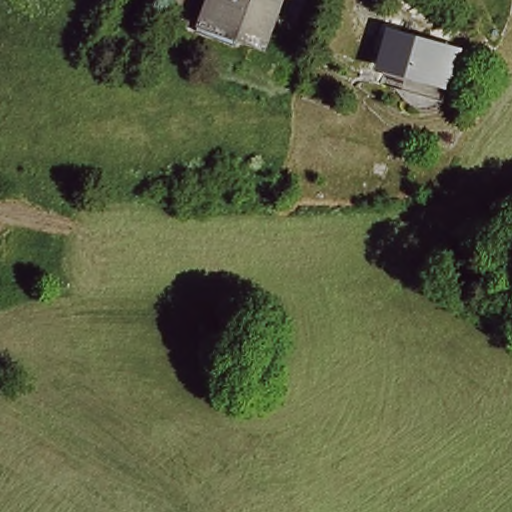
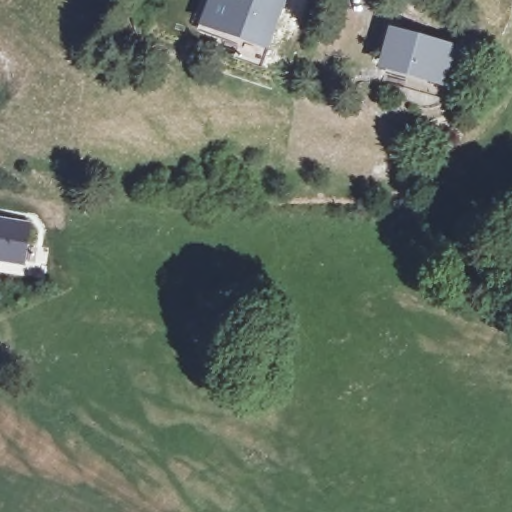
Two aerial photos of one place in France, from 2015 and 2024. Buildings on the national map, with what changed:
unchanged [(267,40),(245,34),(243,40),(207,28),(217,0),(282,0),(267,40)]
unchanged [(382,55),(390,24),(443,40),(435,70),(406,62),(382,55)]
unchanged [(435,70),(443,40),(455,44),(441,90),(403,80),(406,62),(435,70)]
new [(31,224),(25,265),(0,262),(0,219),(31,224)]

